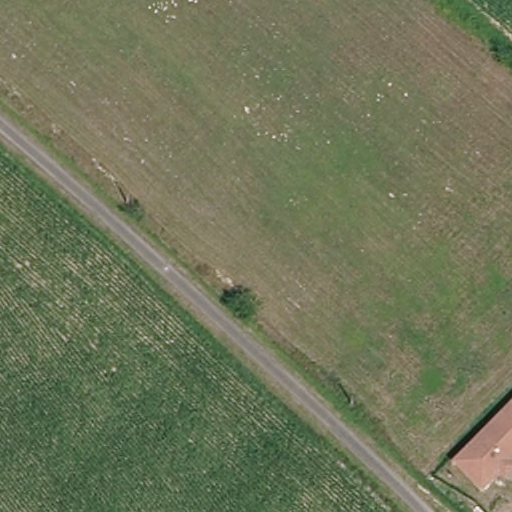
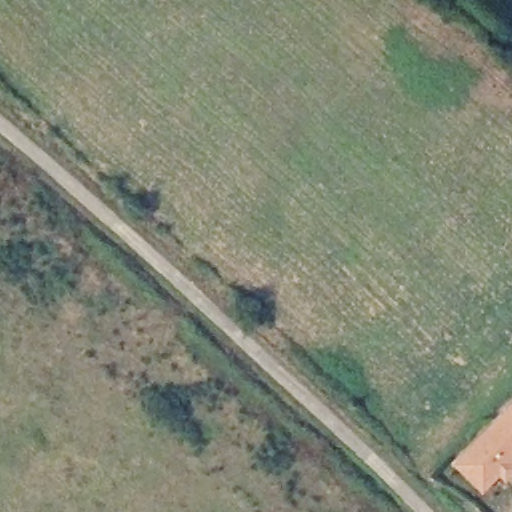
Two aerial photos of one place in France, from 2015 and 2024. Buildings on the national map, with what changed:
unchanged [(495,478),(477,495),(451,470),(507,414),(512,419),(512,460),(503,469),(510,475),(501,484),(495,478)]

